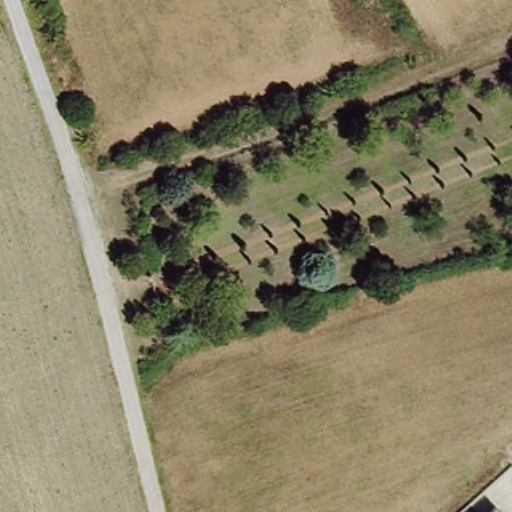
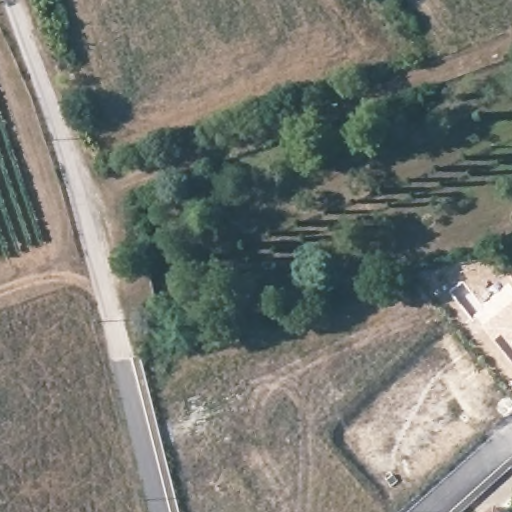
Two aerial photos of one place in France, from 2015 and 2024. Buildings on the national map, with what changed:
new [(512,303),(512,363),(482,327),(512,303)]
unchanged [(498,512),(494,512),(497,510),(498,512)]

